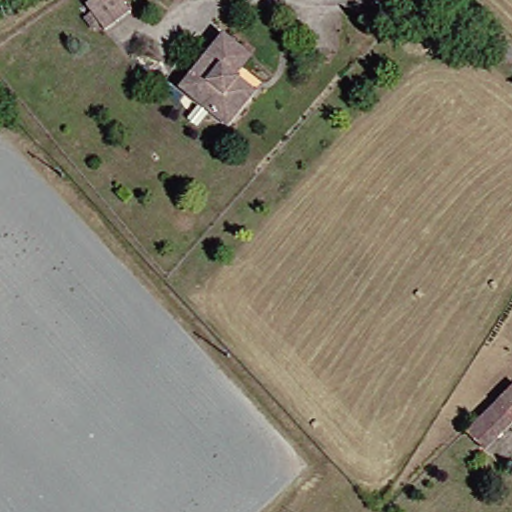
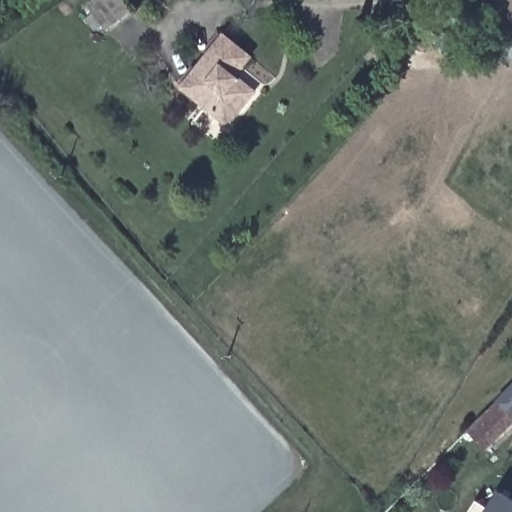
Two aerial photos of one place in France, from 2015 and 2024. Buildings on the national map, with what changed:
unchanged [(120,0),(129,14),(99,35),(79,6),(87,0),(120,0)]
unchanged [(245,103),(222,131),(175,92),(217,42),(243,61),(228,81),(231,82),(250,98),(245,103)]
unchanged [(512,426),(486,451),(468,432),(512,387),(512,426)]
new [(512,512),(472,512),(478,502),(490,510),(501,492),(512,499),(512,512)]

